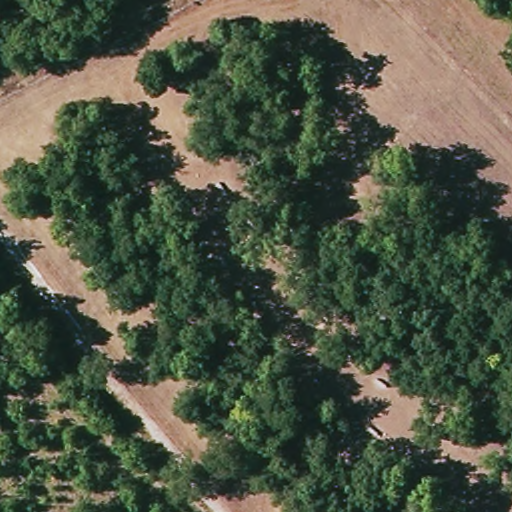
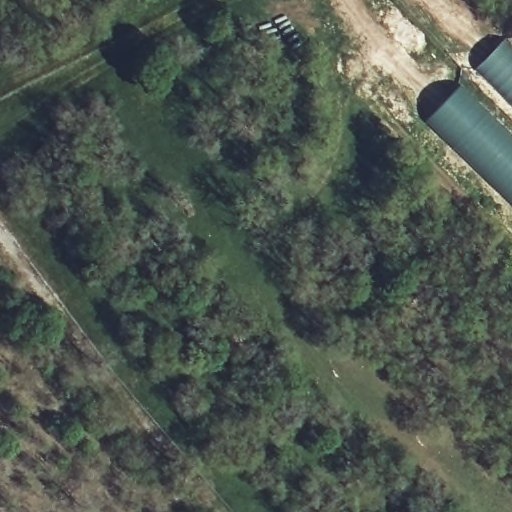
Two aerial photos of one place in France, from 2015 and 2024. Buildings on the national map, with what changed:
new [(507,37),(512,42),(512,105),(477,70),(507,37)]
new [(460,84),(512,133),(512,207),(423,122),(460,84)]

